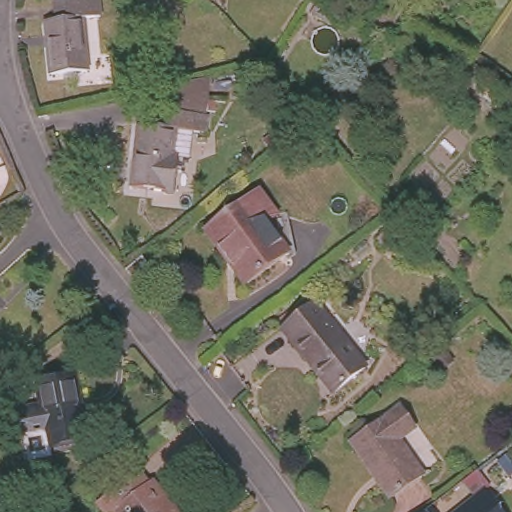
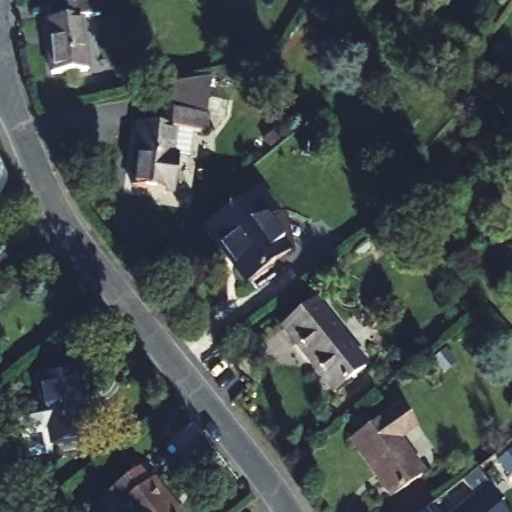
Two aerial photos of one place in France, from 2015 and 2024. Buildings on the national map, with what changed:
unchanged [(50,77),(47,18),(62,18),(60,1),(66,0),(103,0),(105,17),(86,22),(90,72),(50,77)]
unchanged [(167,86),(210,78),(209,116),(201,115),(165,116),(167,86)]
unchanged [(175,160),(182,160),(185,194),(142,194),(140,134),(157,134),(157,116),(201,115),(202,131),(175,132),(175,160)]
unchanged [(279,212),(279,235),(293,250),(250,286),(234,266),(240,260),(231,249),(224,255),(207,235),(259,190),(279,212)]
unchanged [(121,272),(140,257),(152,273),(135,288),(121,272)]
unchanged [(365,365),(332,391),(282,331),(315,304),(365,365)]
unchanged [(82,438),(45,442),(39,378),(74,373),(82,438)]
unchanged [(403,421),(387,434),(417,470),(390,493),(349,445),(392,407),(403,421)]
unchanged [(127,512),(121,505),(111,512),(108,512),(100,503),(141,470),(150,480),(155,476),(184,512),(127,512)]
unchanged [(512,511),(512,512),(453,512),(490,485),(512,511)]
unchanged [(418,512),(421,510),(423,512),(418,512)]

